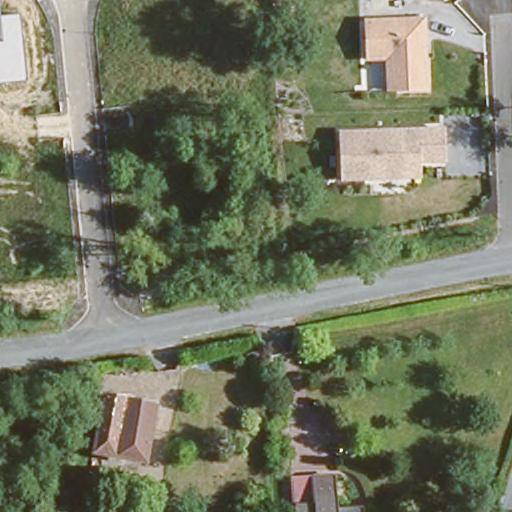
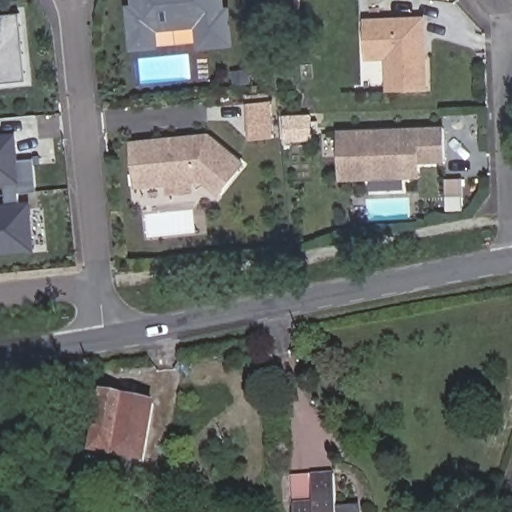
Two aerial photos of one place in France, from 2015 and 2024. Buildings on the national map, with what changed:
new [(125,5),(131,5),(131,0),(224,0),(225,7),(230,7),(234,47),(197,51),(195,28),(156,32),(159,49),(130,51),(125,5)]
unchanged [(26,81),(0,83),(0,16),(19,15),(26,81)]
unchanged [(385,92),(383,61),(365,62),(364,22),(426,17),(430,91),(385,92)]
unchanged [(444,127),(446,163),(422,164),(421,179),(342,182),(338,131),(444,127)]
new [(208,133),(245,164),(218,197),(199,180),(194,180),(195,192),(167,195),(166,184),(134,187),(128,141),(208,133)]
new [(14,160),(32,158),(36,192),(15,194),(16,206),(26,204),(30,248),(0,251),(0,135),(11,134),(14,160)]
unchanged [(106,442),(99,476),(83,472),(103,383),(157,393),(145,450),(106,442)]
unchanged [(341,512),(292,512),(291,503),(314,502),(312,473),(338,471),(341,512)]

